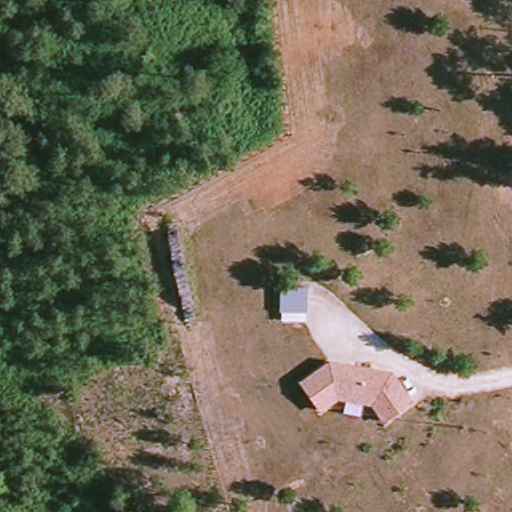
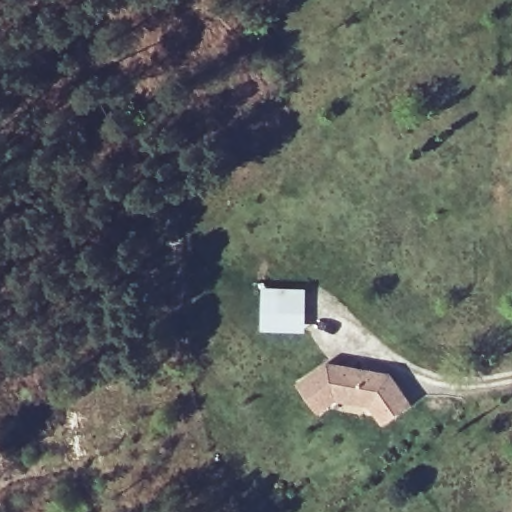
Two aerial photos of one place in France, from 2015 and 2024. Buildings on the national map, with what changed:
new [(267,288),(307,288),(306,329),(267,329),(267,288)]
unchanged [(412,400),(386,420),(374,403),(337,398),(322,410),(302,385),(330,363),(391,373),(412,400)]

